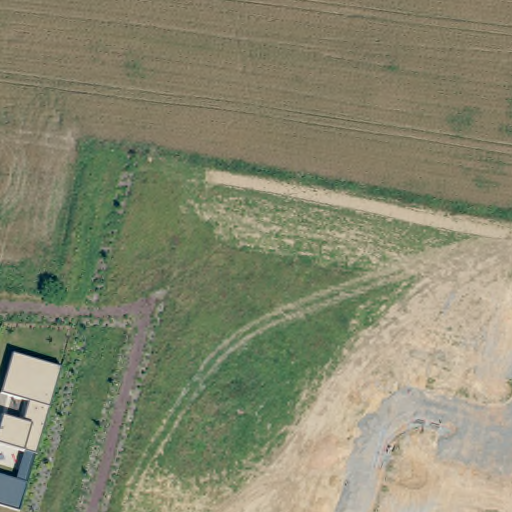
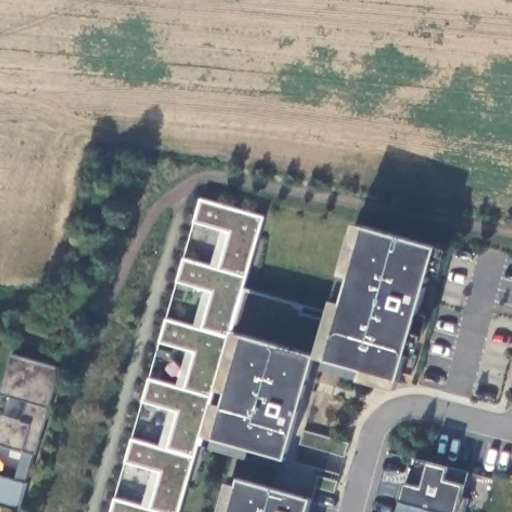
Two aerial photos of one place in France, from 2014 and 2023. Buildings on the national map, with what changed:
new [(264,217),(244,288),(329,312),(355,223),(438,247),(397,389),(361,379),(313,366),(288,459),(280,488),(314,497),(310,512),(220,512),(228,482),(240,484),(242,478),(245,459),(210,449),(215,437),(204,434),(196,457),(180,512),(112,512),(116,498),(142,506),(153,469),(126,462),(134,439),(160,447),(170,409),(144,401),(150,379),(176,386),(187,349),(160,342),(167,318),(194,325),(204,290),(178,281),(185,259),(212,266),(224,230),(195,221),(202,199),(264,217)]
unchanged [(59,370),(19,509),(0,504),(0,475),(17,479),(25,453),(0,447),(0,423),(1,418),(22,424),(29,402),(0,395),(12,356),(59,370)]
new [(406,482),(412,484),(420,459),(430,461),(450,467),(467,471),(463,484),(461,497),(469,501),(466,512),(398,512),(401,499),(406,482)]

